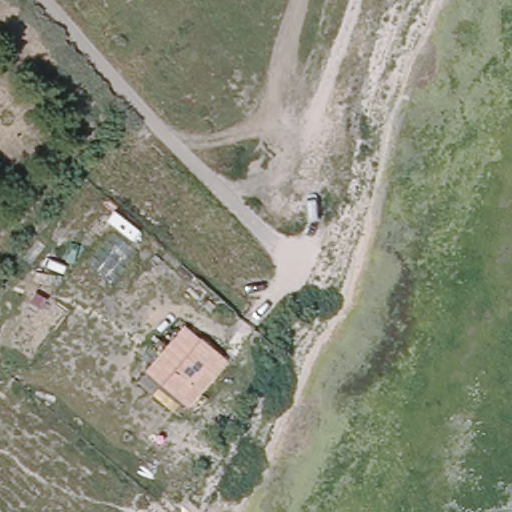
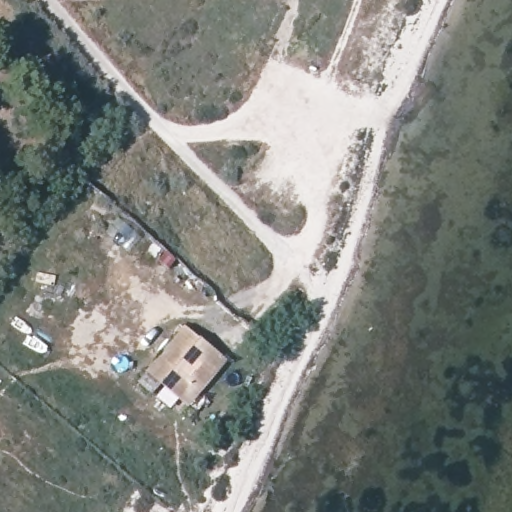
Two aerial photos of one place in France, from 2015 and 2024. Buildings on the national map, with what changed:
unchanged [(145,371),(187,324),(228,360),(187,407),(145,371)]

